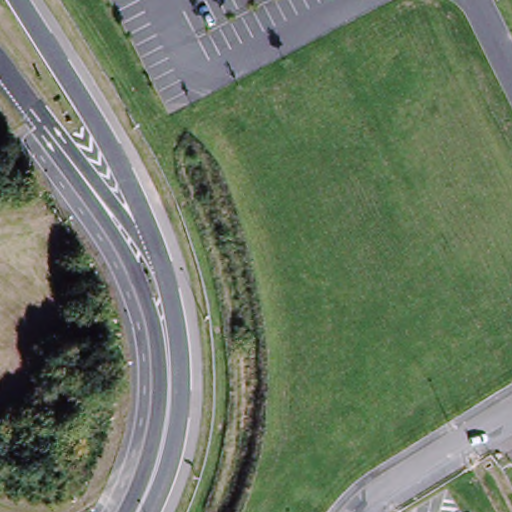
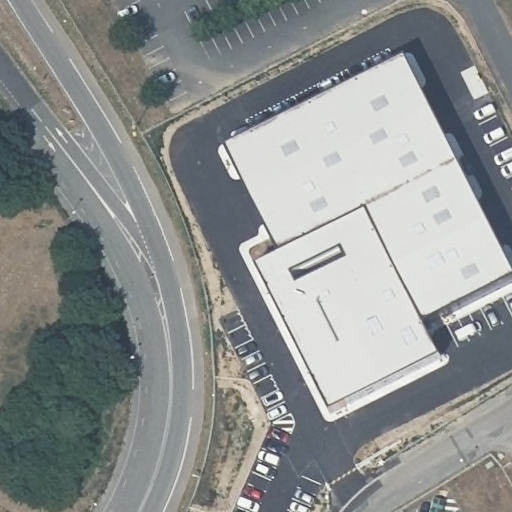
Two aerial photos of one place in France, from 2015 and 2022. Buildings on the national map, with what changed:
new [(512,267),(512,271),(424,318),(439,353),(329,409),(258,260),(279,249),(227,140),(407,54),(512,267)]

